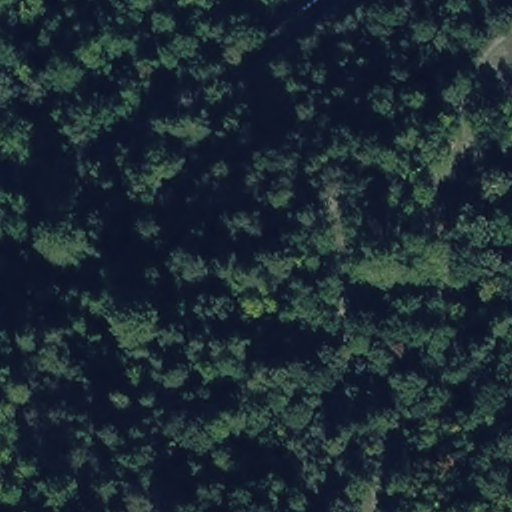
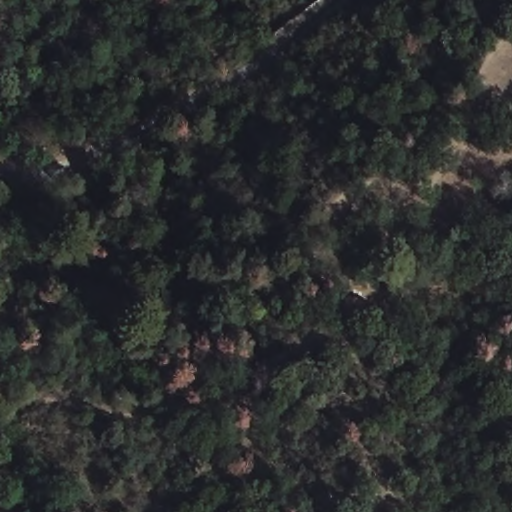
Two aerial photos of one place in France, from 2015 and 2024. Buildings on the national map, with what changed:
unchanged [(365,317),(341,312),(346,290),(370,294),(365,317)]

